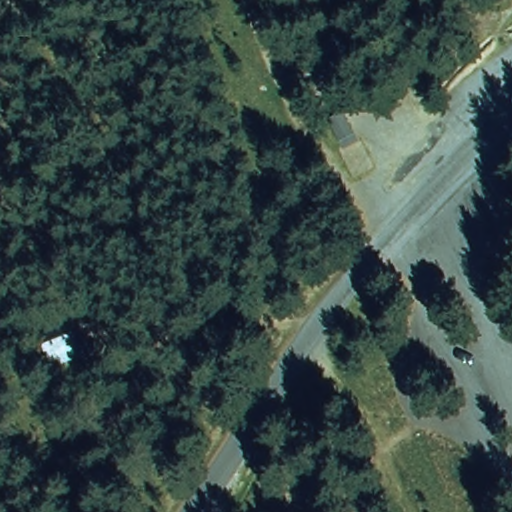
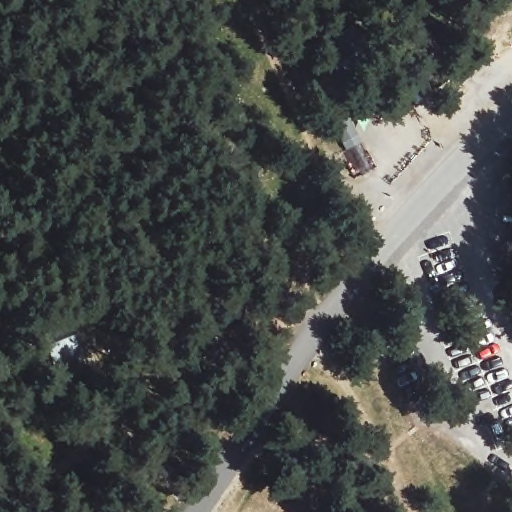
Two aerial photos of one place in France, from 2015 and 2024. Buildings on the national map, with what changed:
unchanged [(333,127),(350,119),(359,137),(342,145),(333,127)]
unchanged [(40,332),(70,321),(85,359),(55,370),(40,332)]

